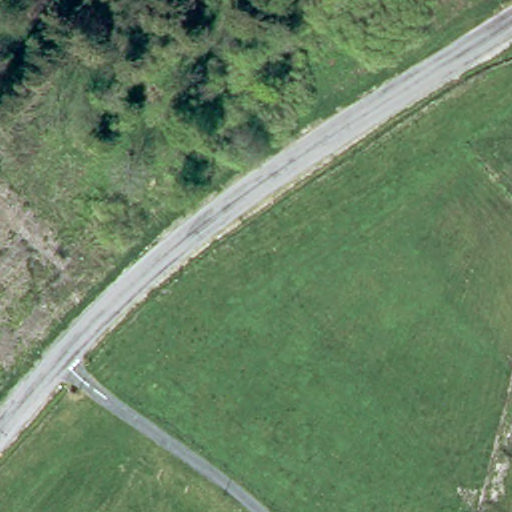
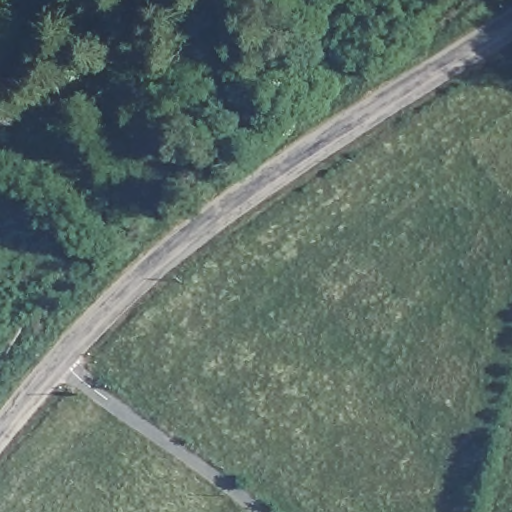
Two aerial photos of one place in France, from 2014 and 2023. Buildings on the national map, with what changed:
unchanged [(299,39),(292,51),(279,42),(286,31),(299,39)]

